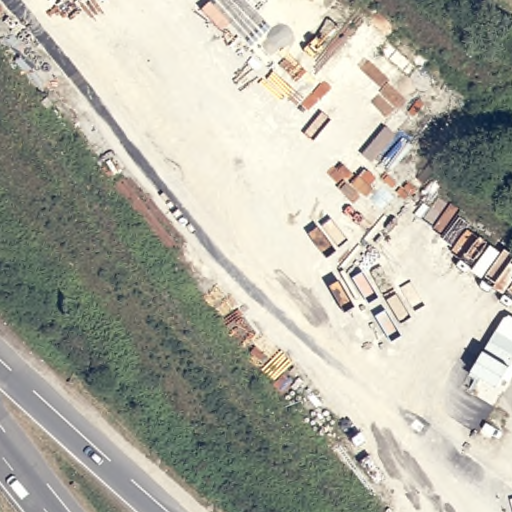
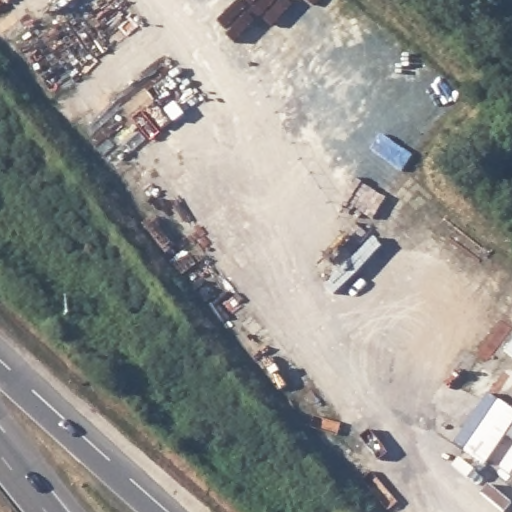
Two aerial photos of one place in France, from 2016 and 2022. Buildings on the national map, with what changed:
[]

